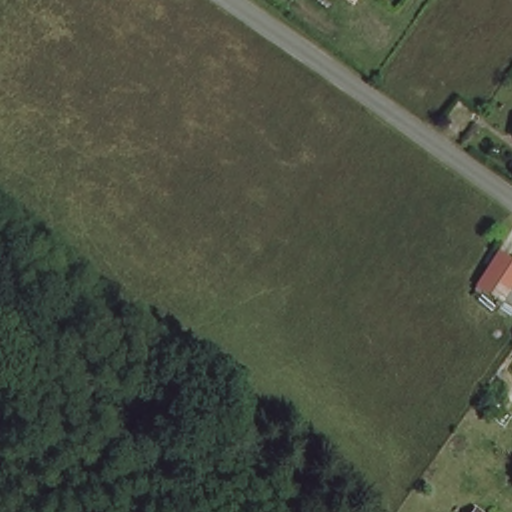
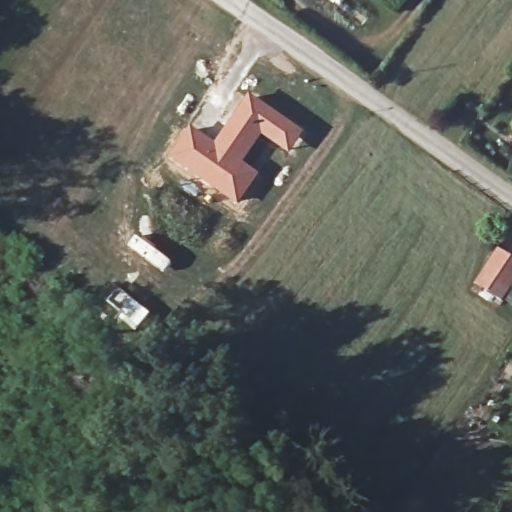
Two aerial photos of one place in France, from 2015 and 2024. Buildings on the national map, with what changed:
new [(190,126),(214,142),(248,94),(302,130),(287,154),(260,136),(243,162),(259,174),(236,205),(170,160),(190,126)]
unchanged [(512,255),(512,284),(502,298),(479,281),(502,247),(512,255)]

